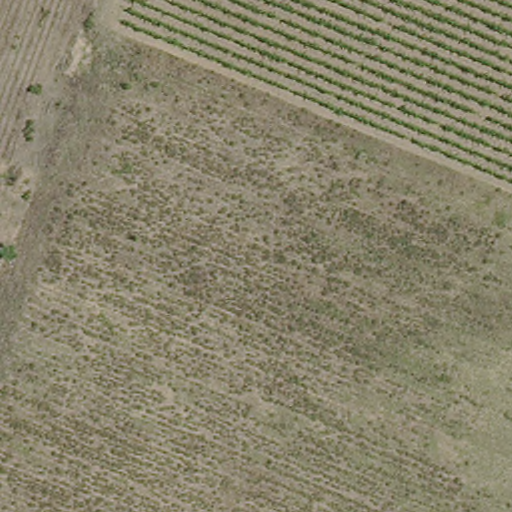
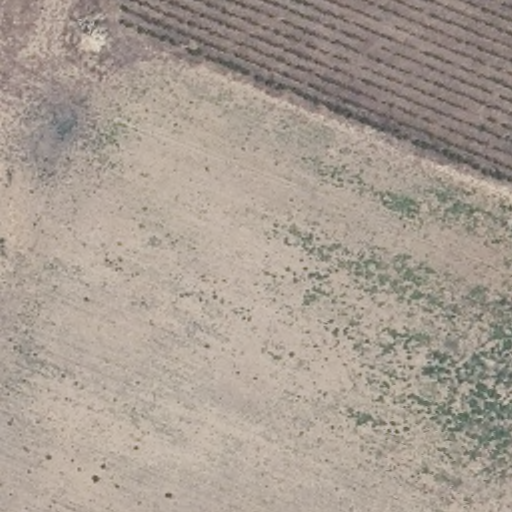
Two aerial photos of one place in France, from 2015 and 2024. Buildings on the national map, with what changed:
[]

